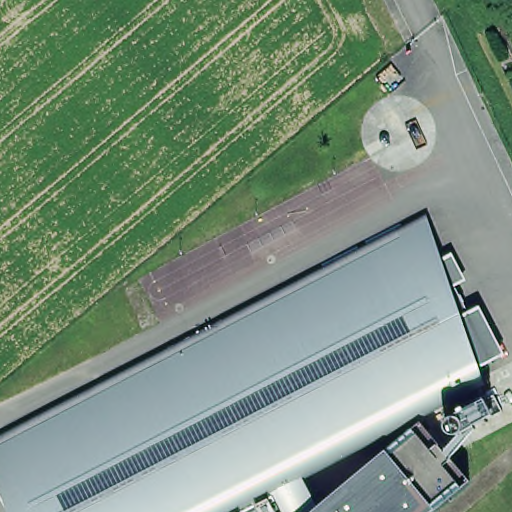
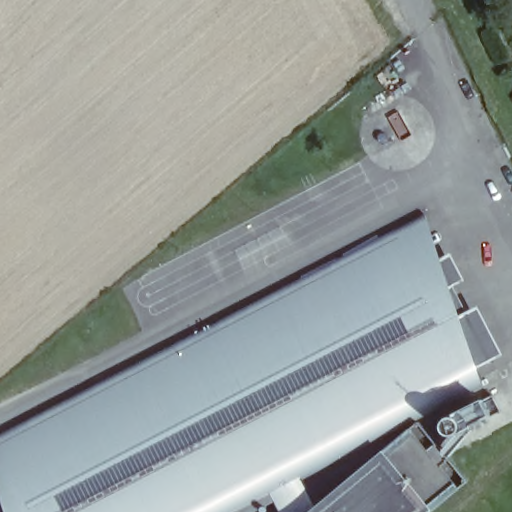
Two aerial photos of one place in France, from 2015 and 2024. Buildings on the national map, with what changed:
unchanged [(0,437),(432,219),(471,306),(480,306),(499,356),(475,371),(503,412),(455,457),(470,478),(433,512),(287,512),(282,499),(256,512),(3,512),(0,502),(0,437)]

